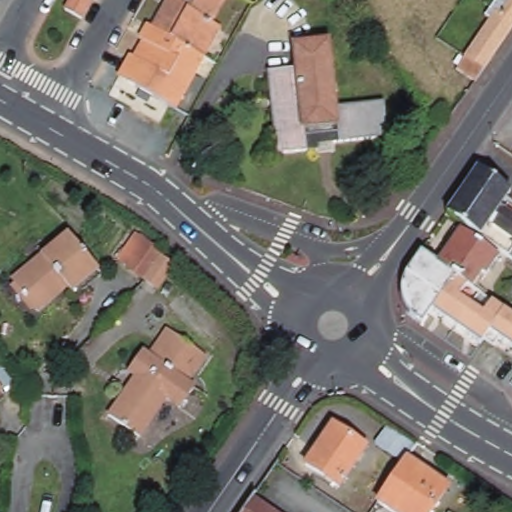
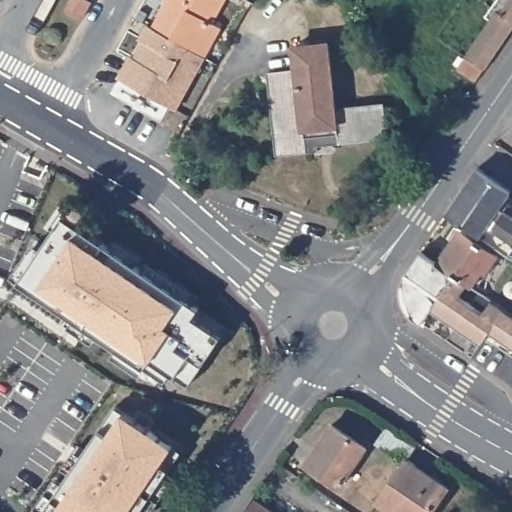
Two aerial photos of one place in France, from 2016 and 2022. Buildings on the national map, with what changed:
unchanged [(91,3),(92,3),(87,10),(82,21),(80,20),(65,11),(71,0),(87,0),(91,3)]
unchanged [(164,3),(160,1),(161,0),(215,0),(202,22),(212,28),(195,57),(192,56),(148,31),(164,3)]
unchanged [(497,16),(508,0),(512,0),(512,24),(511,25),(497,16)]
unchanged [(487,21),(493,13),(497,16),(511,25),(479,71),(470,83),(453,71),(461,59),(487,21)]
unchanged [(124,57),(133,41),(131,40),(139,25),(148,31),(192,56),(164,108),(110,77),(122,56),(124,57)]
unchanged [(295,70),(295,49),(331,47),(334,114),(379,112),(381,143),(314,147),(314,152),(273,154),(268,72),(295,70)]
unchanged [(512,159),(510,158),(512,155),(512,159)]
unchanged [(504,192),(498,202),(512,212),(512,214),(508,219),(512,221),(512,265),(493,252),(448,220),(440,215),(472,169),(504,192)]
new [(58,217),(195,308),(190,317),(218,336),(185,386),(167,374),(161,382),(14,283),(58,217)]
unchanged [(491,259),(478,278),(475,275),(465,288),(430,264),(452,232),(491,259)]
demolished [(25,269),(38,259),(37,257),(63,235),(94,271),(68,292),(63,286),(50,297),(51,299),(34,313),(8,282),(24,268),(25,269)]
demolished [(133,241),(171,267),(155,291),(113,269),(133,241)]
unchanged [(486,348),(477,342),(473,347),(424,313),(414,327),(408,323),(407,322),(404,320),(401,317),(405,314),(398,287),(394,286),(395,282),(395,281),(397,277),(414,253),(420,257),(430,264),(465,288),(476,296),(500,312),(509,319),(512,321),(512,355),(491,341),(486,348)]
demolished [(127,373),(140,353),(147,357),(156,344),(194,370),(185,383),(193,388),(178,408),(162,397),(145,422),(148,424),(138,438),(108,417),(121,396),(123,397),(136,379),(127,373)]
new [(171,449),(160,467),(168,473),(142,512),(45,512),(113,410),(171,449)]
unchanged [(361,450),(335,489),(301,466),(327,427),(361,450)]
unchanged [(428,512),(386,512),(373,504),(402,461),(444,489),(428,512)]
unchanged [(239,512),(247,500),(265,512),(239,512)]

